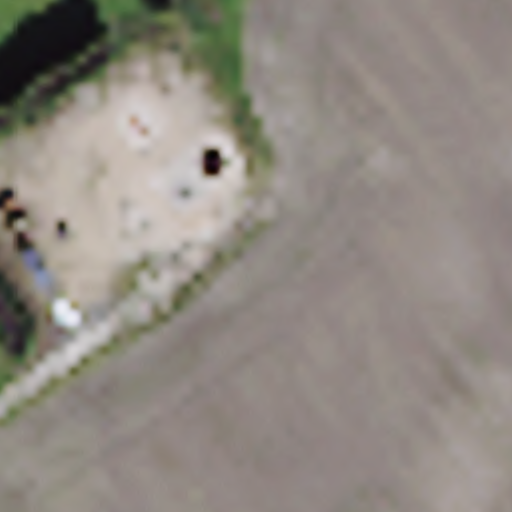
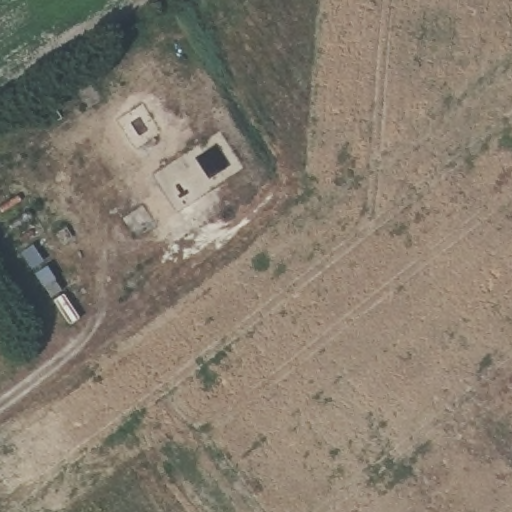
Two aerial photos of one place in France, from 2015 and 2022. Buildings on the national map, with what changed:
unchanged [(55,280),(62,290),(51,298),(44,287),(55,280)]
unchanged [(63,293),(80,318),(70,325),(53,300),(63,293)]

